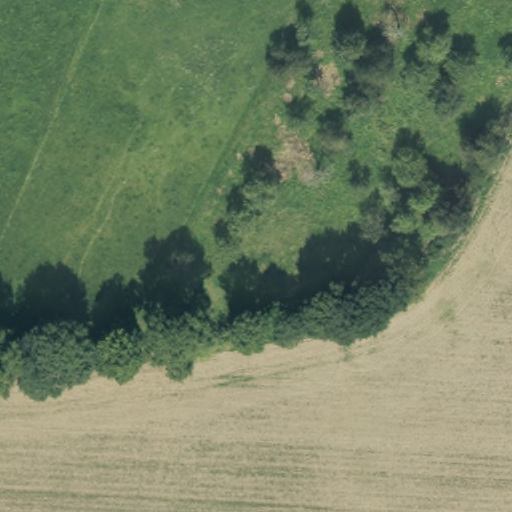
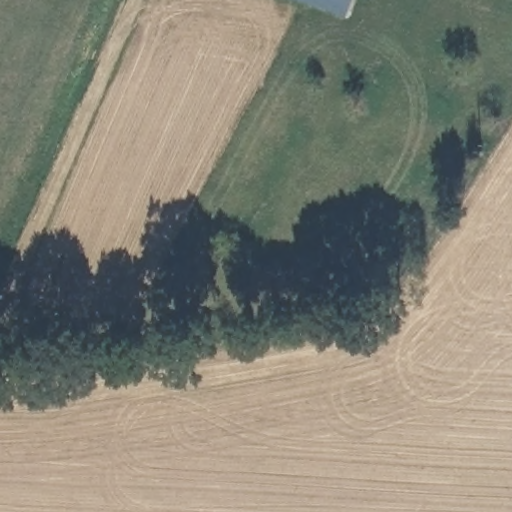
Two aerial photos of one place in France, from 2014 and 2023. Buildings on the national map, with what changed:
new [(346,18),(295,0),(351,0),(346,18)]

